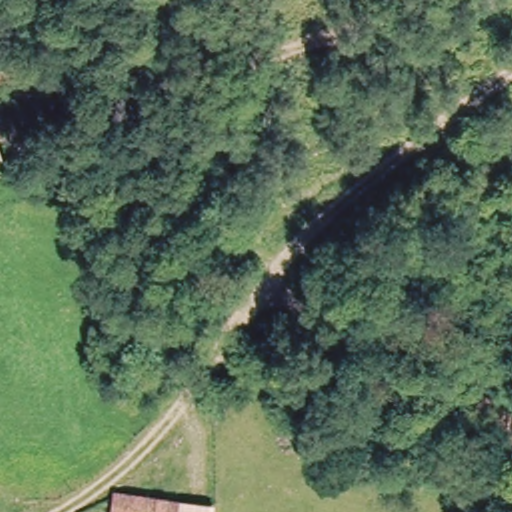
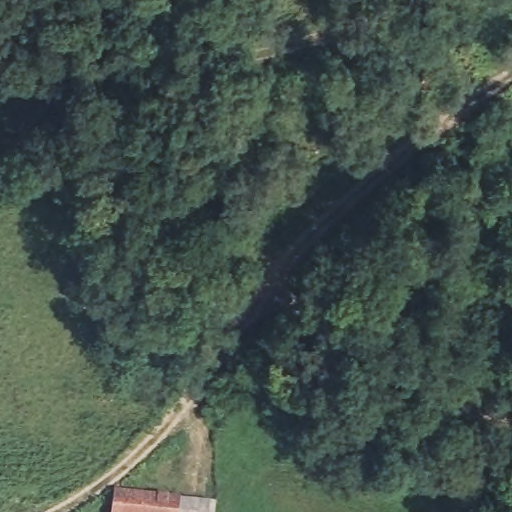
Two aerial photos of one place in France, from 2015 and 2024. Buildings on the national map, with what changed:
unchanged [(0,174),(0,134),(11,171),(0,174)]
unchanged [(198,501),(197,512),(127,512),(128,495),(198,501)]

